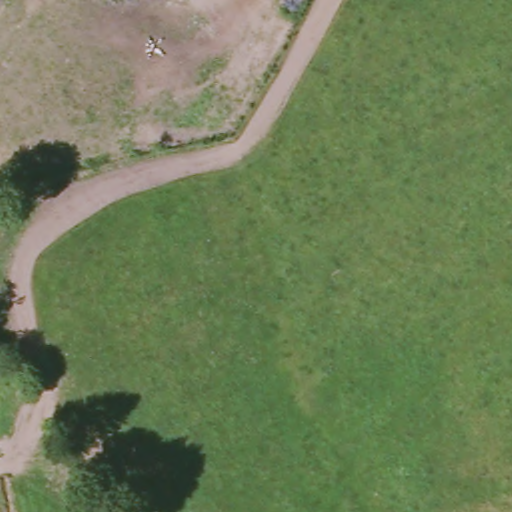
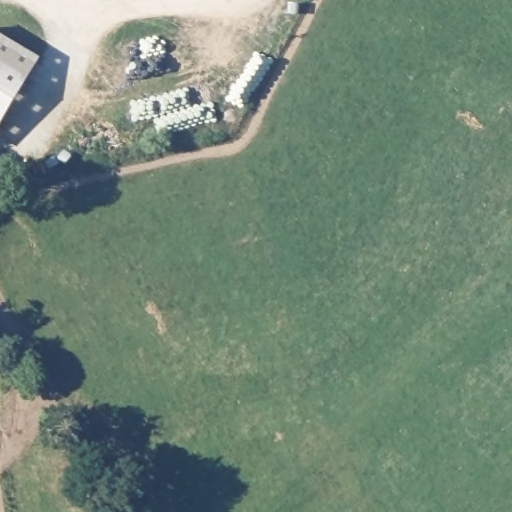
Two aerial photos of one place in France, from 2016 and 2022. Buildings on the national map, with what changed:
new [(0,125),(0,34),(39,57),(0,125)]

